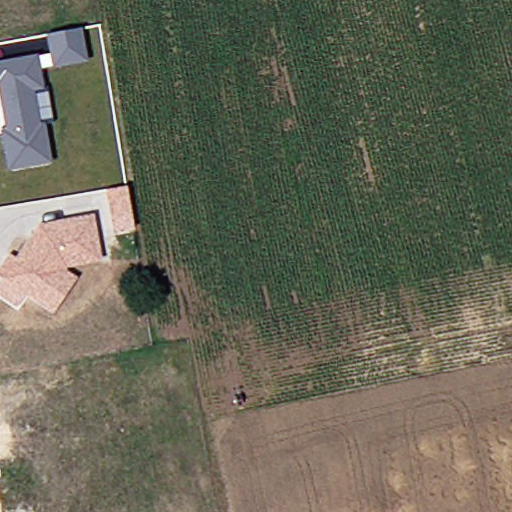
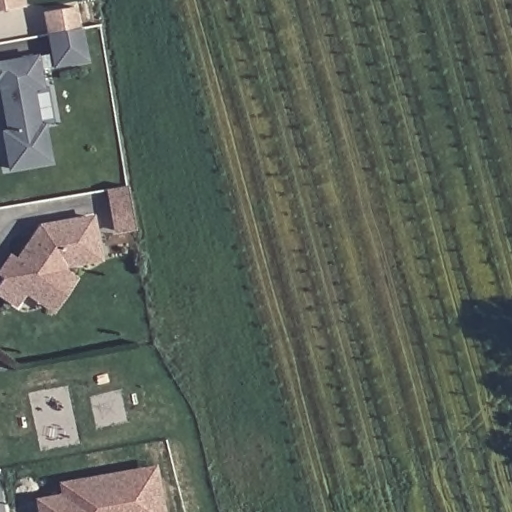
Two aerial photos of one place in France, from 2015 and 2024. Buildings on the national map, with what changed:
new [(25,6),(0,10),(0,0),(25,0),(25,6)]
unchanged [(52,67),(47,36),(80,30),(87,62),(52,67)]
unchanged [(7,170),(0,133),(0,130),(5,130),(0,102),(0,62),(37,55),(43,91),(34,92),(40,124),(44,124),(52,162),(7,170)]
unchanged [(106,191),(126,186),(133,229),(114,232),(106,191)]
unchanged [(25,295),(17,307),(0,297),(0,281),(2,278),(0,277),(0,266),(9,254),(15,258),(40,223),(41,226),(93,213),(102,261),(66,268),(65,270),(77,277),(52,313),(25,295)]
new [(155,467),(164,512),(151,512),(144,468),(155,467)]
new [(92,478),(144,468),(151,512),(43,512),(40,500),(66,495),(64,483),(92,478)]

